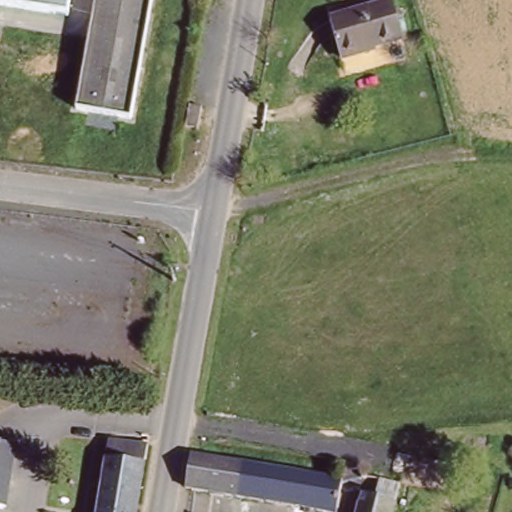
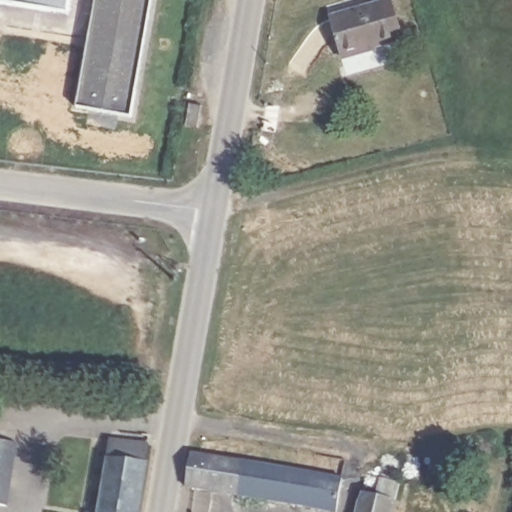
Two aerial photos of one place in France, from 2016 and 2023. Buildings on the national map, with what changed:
unchanged [(65,14),(0,3),(0,0),(68,0),(65,14)]
unchanged [(94,0),(152,0),(133,117),(77,108),(94,0)]
unchanged [(331,19),(393,0),(395,0),(407,39),(342,58),(331,19)]
unchanged [(172,150),(187,152),(185,166),(170,163),(172,150)]
unchanged [(147,439),(133,512),(93,512),(108,433),(147,439)]
unchanged [(14,441),(5,505),(0,504),(0,439),(14,441)]
unchanged [(187,450),(195,451),(340,475),(339,484),(334,511),(190,485),(181,483),(187,450)]
unchanged [(399,493),(394,512),(357,512),(365,484),(399,493)]

